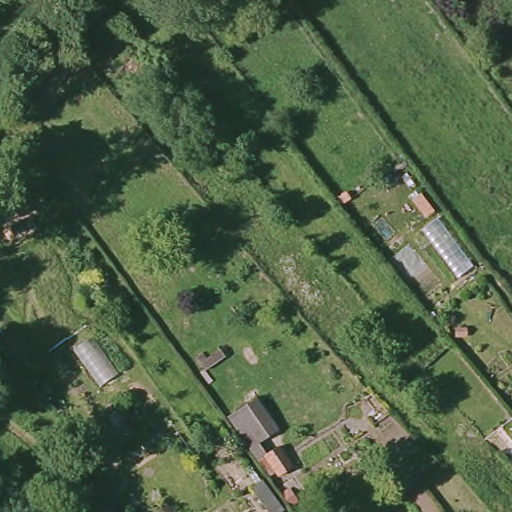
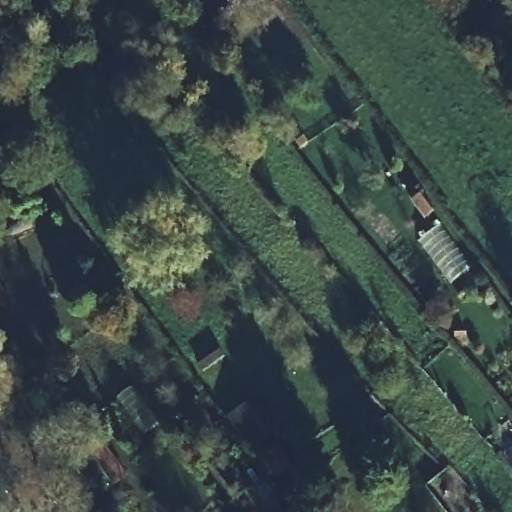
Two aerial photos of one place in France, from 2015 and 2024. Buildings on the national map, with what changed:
unchanged [(401,256),(429,233),(449,277),(422,292),(401,256)]
unchanged [(224,417),(249,397),(279,432),(268,441),(286,462),(268,477),(224,417)]
unchanged [(512,438),(512,444),(509,440),(512,438)]
unchanged [(509,512),(512,510),(512,512),(509,512)]

